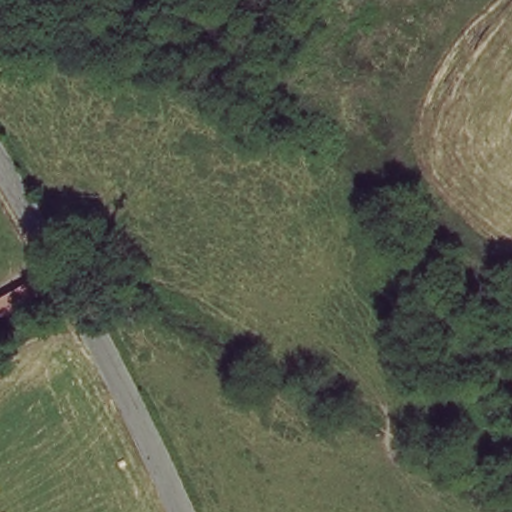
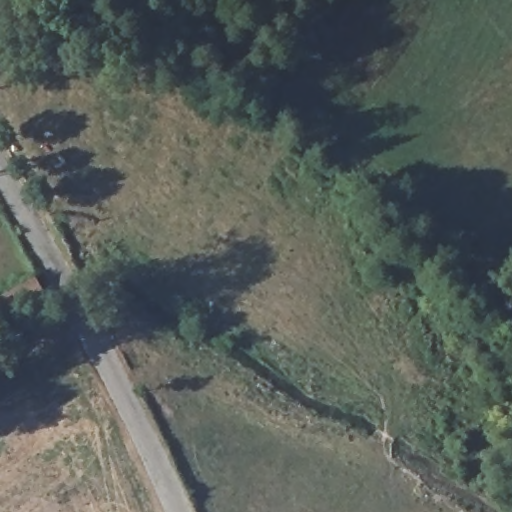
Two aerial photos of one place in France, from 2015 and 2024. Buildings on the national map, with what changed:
unchanged [(30,292),(40,286),(45,297),(0,325),(0,308),(30,292)]

